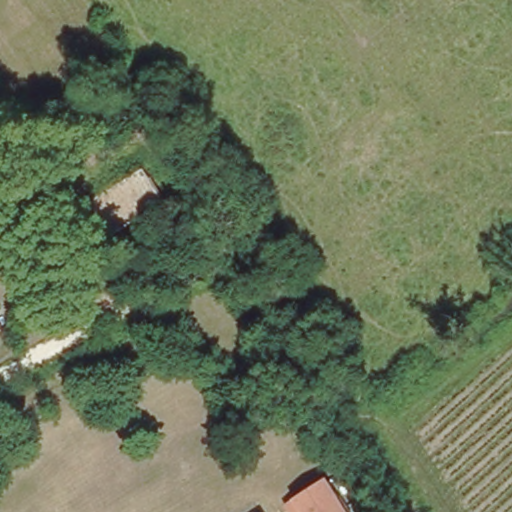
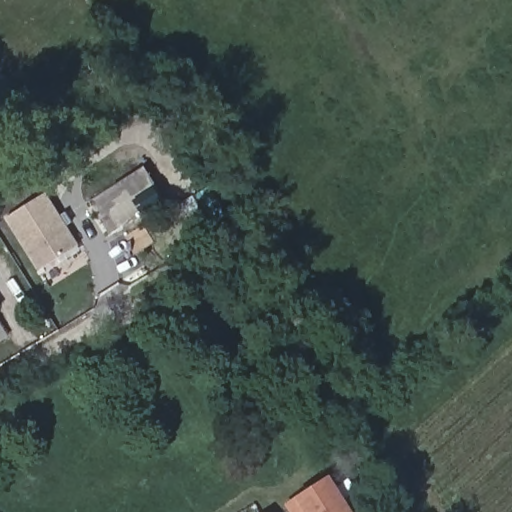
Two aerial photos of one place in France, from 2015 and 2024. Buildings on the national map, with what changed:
unchanged [(161,197),(127,218),(106,231),(86,197),(105,185),(140,163),(161,197)]
new [(6,219),(46,193),(80,245),(39,271),(6,219)]
unchanged [(331,481),(350,512),(296,512),(292,505),(331,481)]

